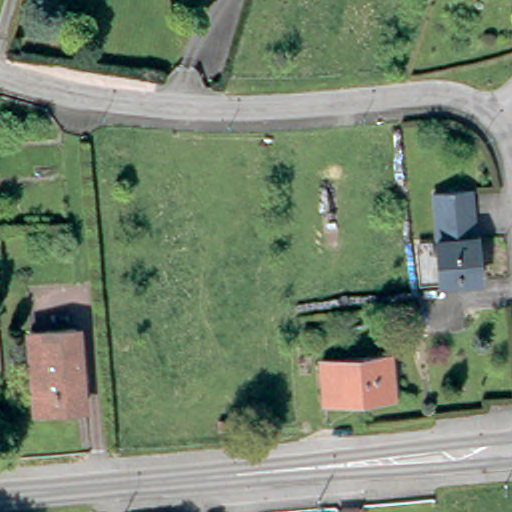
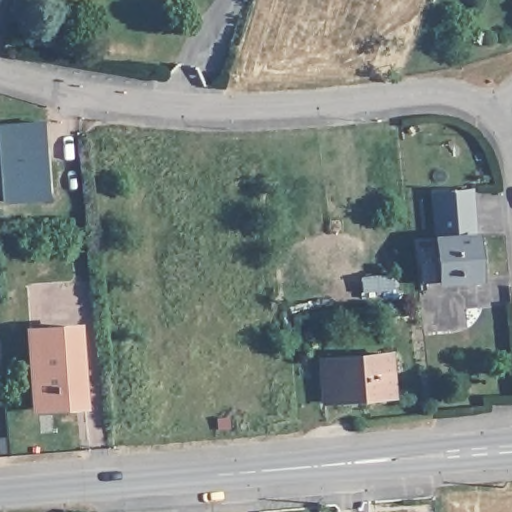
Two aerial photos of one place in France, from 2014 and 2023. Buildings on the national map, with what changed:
new [(0,165),(0,124),(44,121),(50,201),(3,205),(0,165)]
unchanged [(441,283),(433,194),(472,190),(479,280),(441,283)]
unchanged [(77,411),(37,414),(30,336),(76,332),(80,375),(82,410),(77,411)]
unchanged [(395,397),(325,403),(322,361),(391,355),(395,397)]

